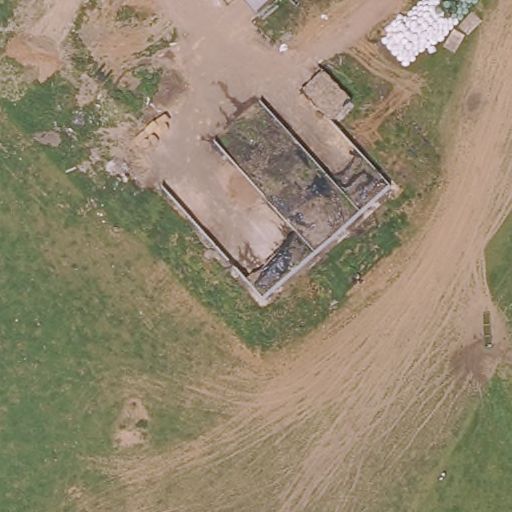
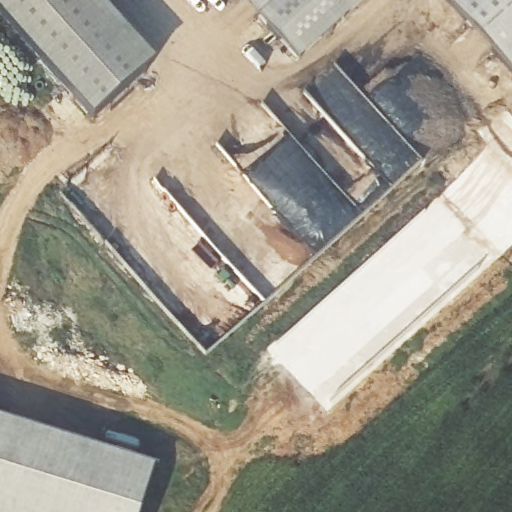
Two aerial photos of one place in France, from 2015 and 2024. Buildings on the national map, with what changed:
new [(94,115),(0,11),(0,0),(103,0),(156,58),(94,115)]
unchanged [(258,19),(241,0),(373,0),(302,67),(258,19)]
new [(449,0),(512,0),(512,70),(449,0)]
new [(143,512),(0,512),(0,415),(156,464),(143,512)]

